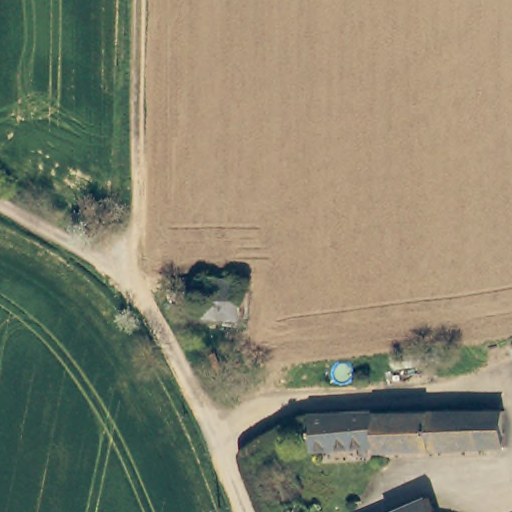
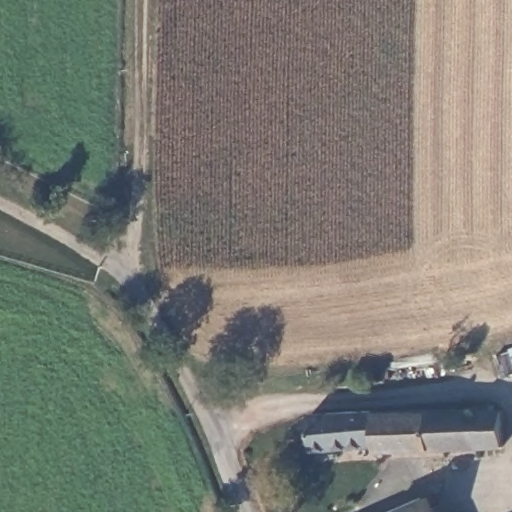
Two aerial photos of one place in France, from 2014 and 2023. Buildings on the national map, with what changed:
unchanged [(198,279),(242,280),(242,318),(197,317),(198,279)]
unchanged [(368,374),(353,379),(342,376),(342,369),(345,362),(364,358),(368,374)]
unchanged [(310,438),(309,414),(500,411),(501,452),(376,450),(376,446),(310,444),(310,438)]
unchanged [(407,508),(432,498),(438,512),(398,512),(407,508)]

